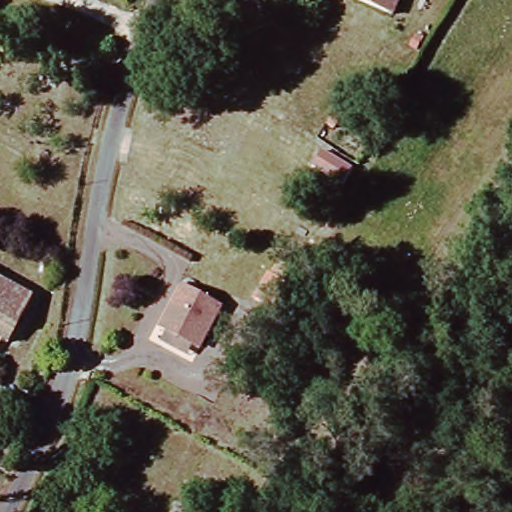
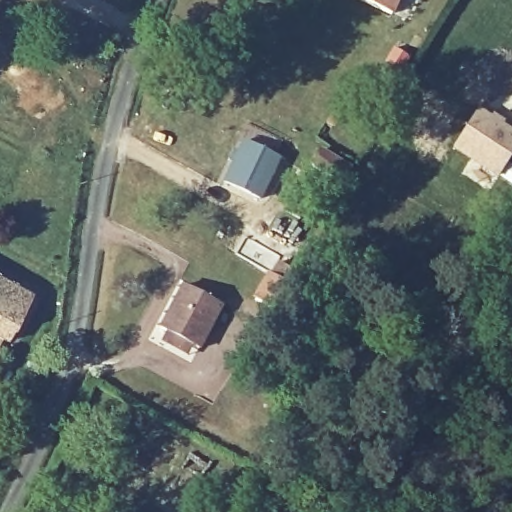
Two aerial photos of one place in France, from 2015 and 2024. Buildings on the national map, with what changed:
unchanged [(387,13),(356,0),(392,0),(387,13)]
new [(482,110),(512,130),(512,161),(502,176),(457,145),(482,110)]
new [(249,142),(283,160),(263,198),(229,181),(249,142)]
unchanged [(260,299),(276,273),(291,283),(275,308),(260,299)]
unchanged [(0,343),(0,282),(32,299),(6,346),(0,343)]
unchanged [(163,340),(169,331),(162,327),(186,286),(226,309),(202,351),(194,346),(189,355),(163,340)]

